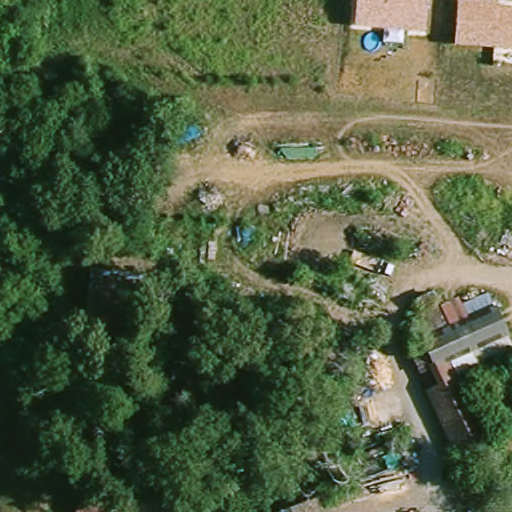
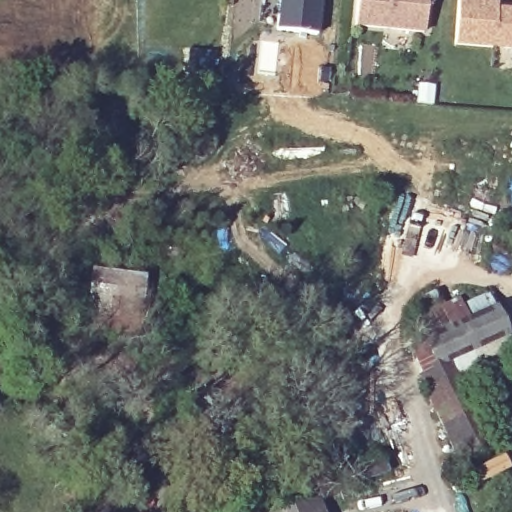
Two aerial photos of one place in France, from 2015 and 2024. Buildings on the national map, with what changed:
new [(279,0),(321,0),(317,33),(276,29),(279,0)]
unchanged [(425,31),(354,24),(356,0),(427,0),(425,31)]
unchanged [(499,8),(512,9),(512,50),(454,46),(457,0),(468,0),(499,1),(499,8)]
unchanged [(154,278),(146,362),(84,353),(93,271),(154,278)]
unchanged [(430,336),(415,299),(439,289),(455,325),(465,321),(458,302),(489,290),(512,342),(512,360),(463,381),(487,442),(454,455),(409,345),(430,336)]
unchanged [(305,449),(326,441),(350,499),(335,505),(328,507),(305,449)]
unchanged [(335,505),(338,512),(317,512),(328,507),(335,505)]

